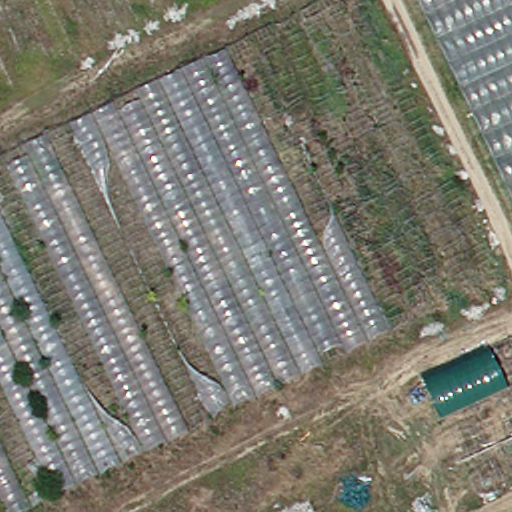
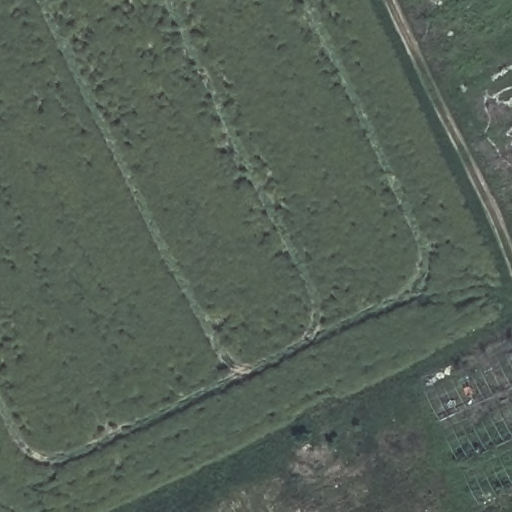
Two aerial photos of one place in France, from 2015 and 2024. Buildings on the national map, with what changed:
demolished [(0,8),(0,0),(38,0),(62,50),(28,66),(0,8)]
demolished [(494,276),(12,512),(8,512),(0,495),(0,149),(304,0),(359,0),(494,276)]
demolished [(73,0),(115,0),(125,20),(91,36),(73,0)]
demolished [(153,5),(150,0),(163,0),(153,5)]
unchanged [(512,213),(411,0),(512,0),(512,213)]
demolished [(512,490),(481,506),(418,378),(510,337),(512,342),(512,490)]

